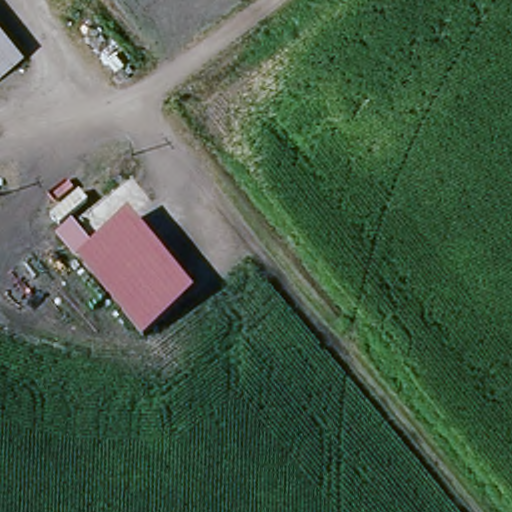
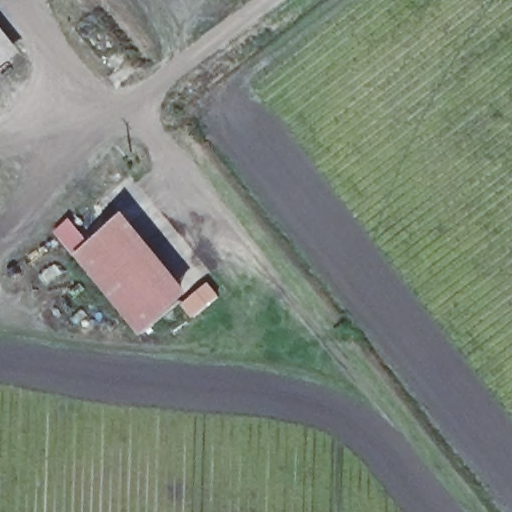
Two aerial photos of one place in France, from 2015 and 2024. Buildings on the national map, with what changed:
unchanged [(0,67),(0,16),(25,47),(0,67)]
unchanged [(194,282),(144,330),(79,263),(126,213),(194,282)]

